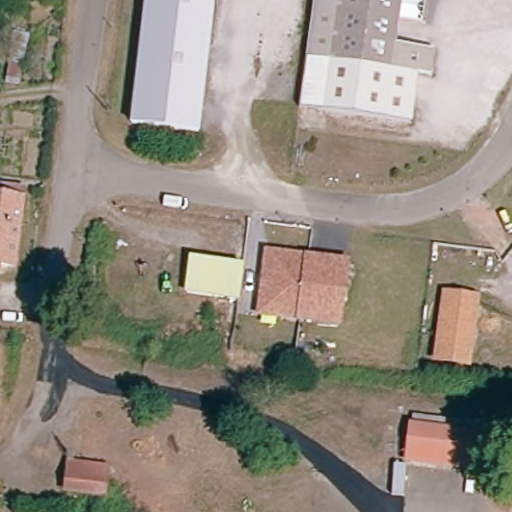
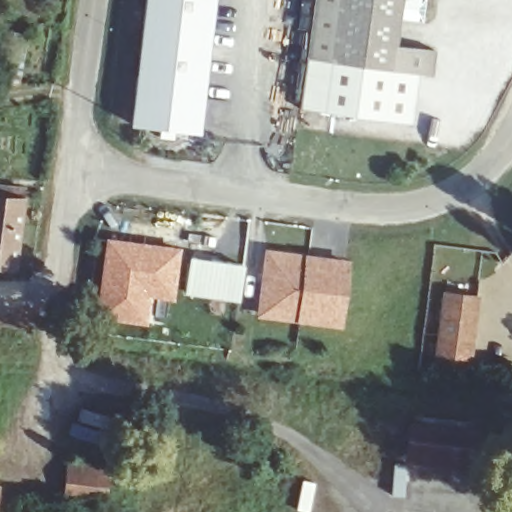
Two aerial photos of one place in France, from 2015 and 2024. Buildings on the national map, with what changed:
unchanged [(130,132),(143,0),(209,0),(196,137),(130,132)]
unchanged [(312,0),(395,0),(391,57),(390,80),(415,85),(412,134),(300,126),(304,75),(307,49),(312,0)]
unchanged [(432,60),(430,86),(415,85),(390,80),(391,57),(432,60)]
unchanged [(0,195),(25,199),(13,276),(0,274),(0,195)]
new [(104,235),(180,246),(174,300),(151,298),(148,327),(90,319),(104,235)]
unchanged [(257,302),(265,250),(344,262),(334,323),(295,317),(255,311),(257,302)]
unchanged [(188,262),(236,268),(233,302),(183,297),(188,262)]
unchanged [(447,294),(478,299),(472,340),(468,364),(437,359),(440,336),(447,294)]
unchanged [(481,438),(477,474),(409,468),(414,431),(481,438)]
unchanged [(112,470),(106,508),(60,500),(67,464),(112,470)]

